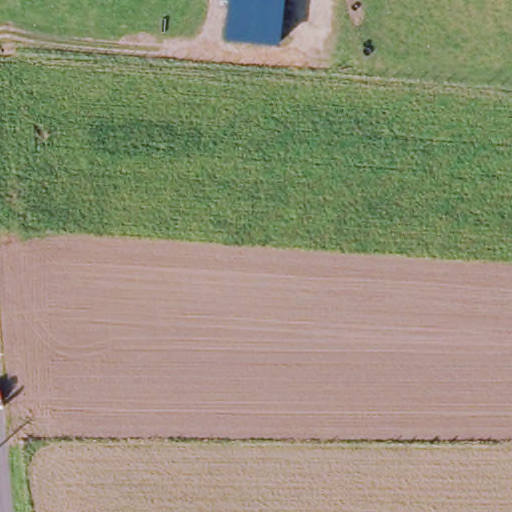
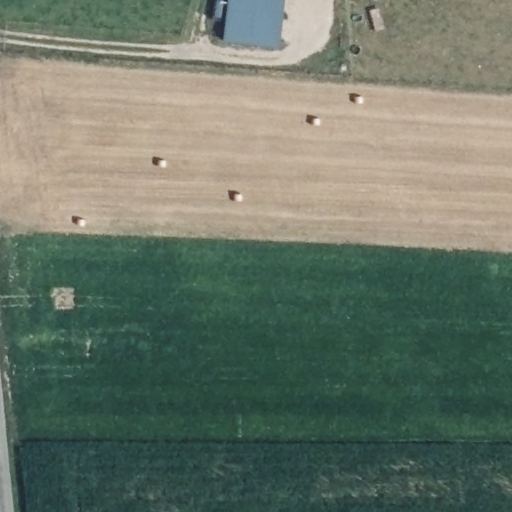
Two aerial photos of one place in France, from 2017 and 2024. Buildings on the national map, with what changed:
unchanged [(227,0),(283,0),(277,47),(222,41),(227,0)]

